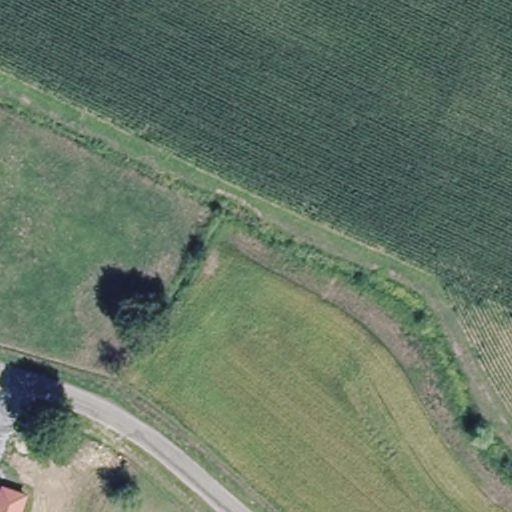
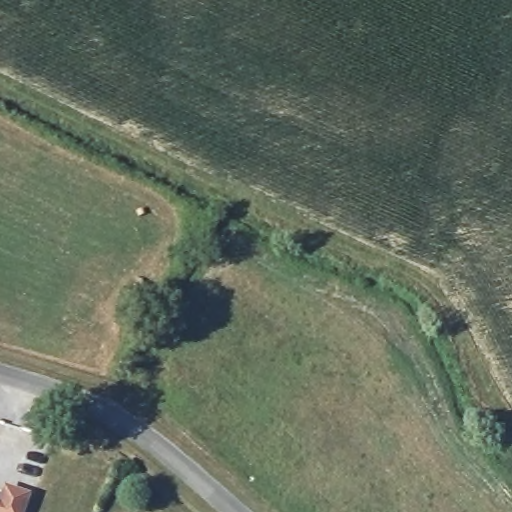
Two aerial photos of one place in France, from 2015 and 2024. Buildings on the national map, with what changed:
unchanged [(4,485),(30,493),(24,512),(0,512),(0,496),(4,485)]

